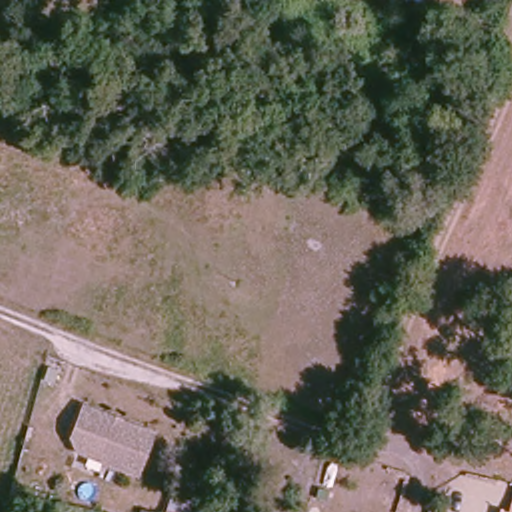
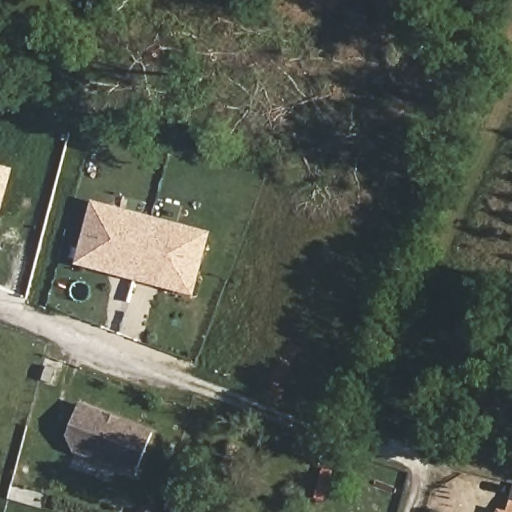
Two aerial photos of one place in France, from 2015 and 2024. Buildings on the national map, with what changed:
new [(13,171),(4,207),(0,206),(0,168),(13,171)]
new [(156,283),(120,274),(81,264),(85,250),(96,205),(210,234),(200,279),(195,294),(156,283)]
unchanged [(67,368),(52,362),(57,341),(72,346),(67,368)]
unchanged [(132,477),(62,446),(80,405),(107,417),(117,422),(151,437),(132,477)]
unchanged [(30,500),(17,496),(25,462),(37,465),(30,500)]
unchanged [(171,489),(194,496),(190,512),(166,512),(171,489)]

